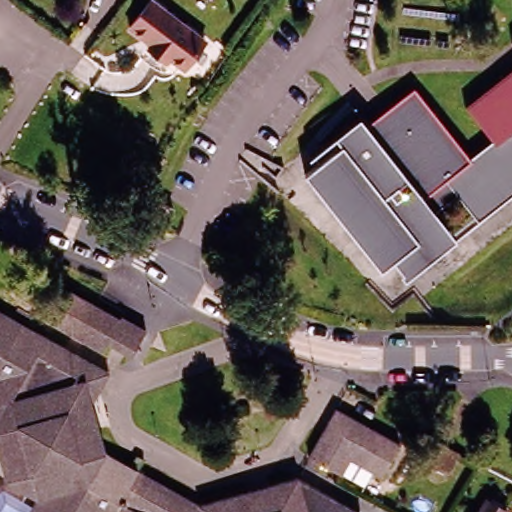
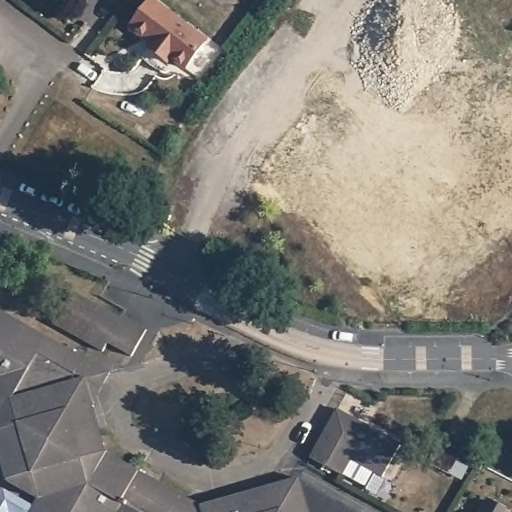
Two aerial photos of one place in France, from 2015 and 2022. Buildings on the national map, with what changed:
unchanged [(127,28),(149,0),(204,42),(182,70),(167,59),(164,64),(145,50),(149,45),(140,38),(127,28)]
demolished [(475,218),(470,212),(454,191),(430,209),(440,221),(429,230),(390,259),(377,269),(302,171),(412,86),(470,161),(493,144),(464,105),(512,68),(512,189),(475,218)]
unchanged [(175,209),(163,226),(147,217),(159,200),(175,209)]
unchanged [(102,350),(53,322),(71,290),(120,318),(122,315),(146,329),(131,355),(124,351),(107,342),(102,350)]
unchanged [(50,507),(35,498),(5,481),(0,462),(0,311),(57,343),(92,363),(109,372),(91,403),(104,451),(144,474),(200,506),(236,496),(298,478),(327,495),(358,512),(48,512),(50,507)]
unchanged [(344,473),(341,472),(309,455),(322,432),(327,434),(332,425),(327,422),(335,409),(337,410),(399,444),(381,476),(372,471),(365,485),(344,473)]
unchanged [(448,471),(430,461),(440,445),(457,455),(448,471)]
unchanged [(7,511),(7,512),(0,512),(0,491),(2,488),(31,505),(35,498),(50,507),(48,512),(8,512),(7,511)]
unchanged [(506,512),(481,512),(487,501),(506,512)]

